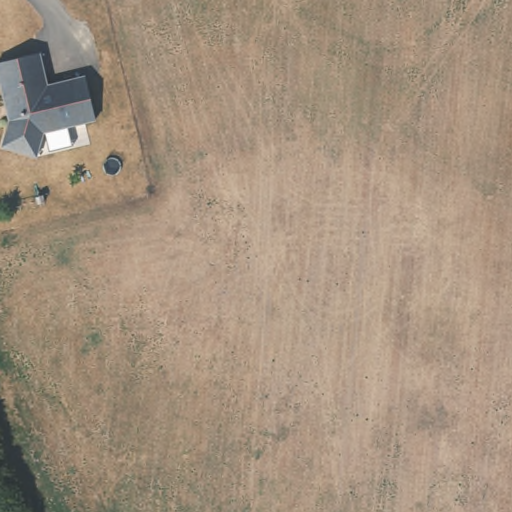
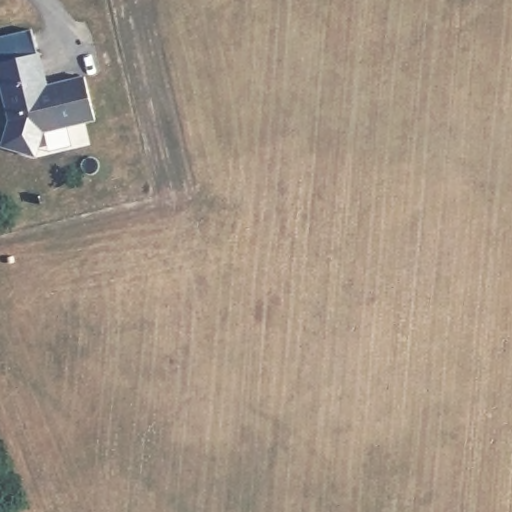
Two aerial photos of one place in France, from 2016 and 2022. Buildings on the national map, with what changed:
unchanged [(50,83),(85,76),(93,116),(43,129),(34,153),(2,142),(10,111),(0,65),(0,60),(43,50),(50,83)]

